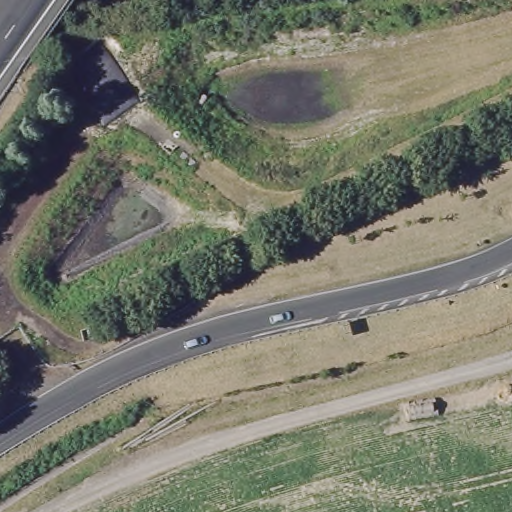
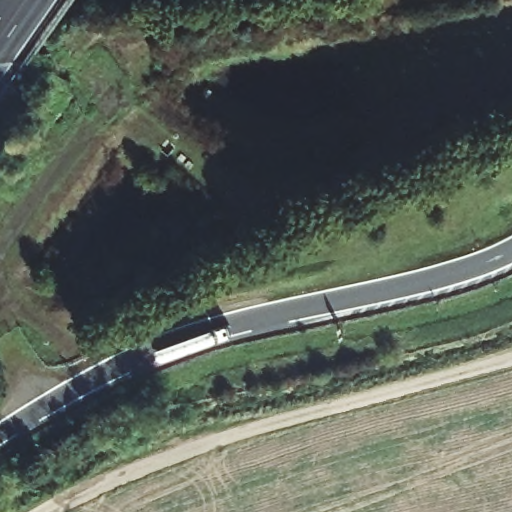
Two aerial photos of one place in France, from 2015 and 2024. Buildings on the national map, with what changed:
[]

